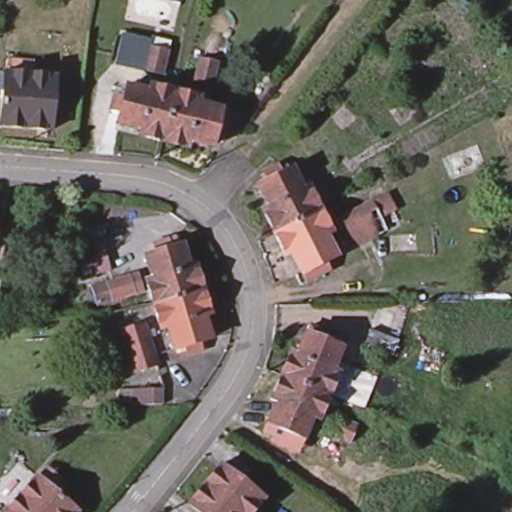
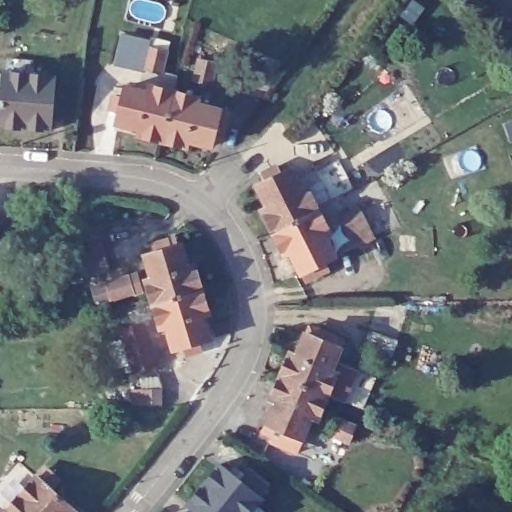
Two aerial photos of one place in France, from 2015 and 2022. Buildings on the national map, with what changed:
unchanged [(46,41),(42,67),(18,64),(21,38),(46,41)]
unchanged [(165,52),(160,74),(142,70),(148,47),(165,52)]
unchanged [(215,64),(210,87),(191,82),(197,59),(215,64)]
unchanged [(50,77),(46,131),(0,127),(0,73),(50,77)]
unchanged [(128,136),(130,129),(110,123),(112,114),(105,113),(108,97),(116,99),(118,89),(141,95),(143,87),(167,94),(155,143),(128,136)]
unchanged [(193,100),(191,107),(214,113),(211,123),(220,125),(216,140),(207,138),(205,149),(180,142),(178,149),(155,143),(167,94),(193,100)]
unchanged [(263,201),(269,198),(260,180),(268,175),(264,166),(277,159),(282,168),(293,162),(303,183),(309,181),(320,202),(276,226),(263,201)]
unchanged [(337,165),(346,181),(327,192),(318,176),(337,165)]
unchanged [(388,232),(355,248),(340,215),(371,199),(366,190),(378,185),(382,193),(388,190),(396,208),(380,216),(388,232)]
unchanged [(320,202),(332,226),(326,229),(337,250),(326,256),(330,264),(318,270),(314,263),(305,268),(293,245),(287,248),(276,226),(320,202)]
unchanged [(147,276),(154,274),(147,252),(158,249),(155,238),(170,234),(173,245),(185,242),(191,263),(200,260),(206,285),(155,300),(147,276)]
unchanged [(103,243),(112,272),(87,279),(79,250),(103,243)]
unchanged [(5,280),(0,319),(0,279),(5,280)]
unchanged [(206,285),(213,310),(205,313),(212,336),(201,340),(203,346),(190,351),(187,342),(177,346),(170,322),(162,324),(155,300),(206,285)]
unchanged [(135,373),(130,352),(124,332),(147,325),(152,346),(158,366),(135,373)]
unchanged [(290,350),(296,353),(305,330),(316,335),(320,326),(335,333),(331,341),(340,344),(330,367),(338,371),(330,392),(280,375),(290,350)]
unchanged [(396,342),(390,358),(365,348),(371,332),(396,342)]
unchanged [(376,380),(368,399),(348,391),(356,372),(376,380)]
unchanged [(270,399),(280,375),(330,392),(319,418),(310,414),(301,435),(291,431),(288,438),(276,433),(278,426),(270,423),(278,402),(270,399)]
unchanged [(160,389),(160,403),(135,404),(135,390),(160,389)]
unchanged [(356,428),(348,445),(329,437),(336,419),(356,428)]
unchanged [(20,478),(3,498),(0,495),(0,463),(1,462),(20,478)]
unchanged [(254,512),(192,512),(190,510),(220,468),(263,500),(254,512)]
unchanged [(75,512),(4,512),(1,510),(35,473),(76,511),(75,512)]

